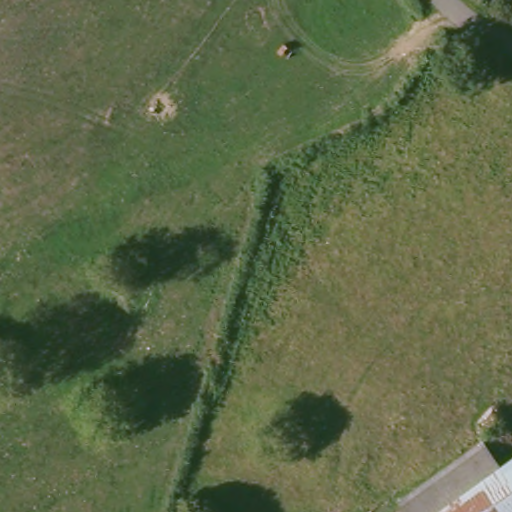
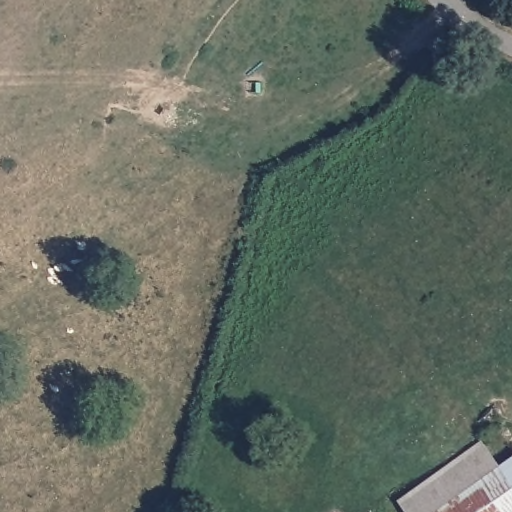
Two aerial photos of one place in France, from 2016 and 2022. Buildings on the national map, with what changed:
unchanged [(502,461),(425,512),(410,512),(398,496),(485,436),(502,461)]
unchanged [(512,453),(512,512),(425,512),(502,461),(512,453)]

